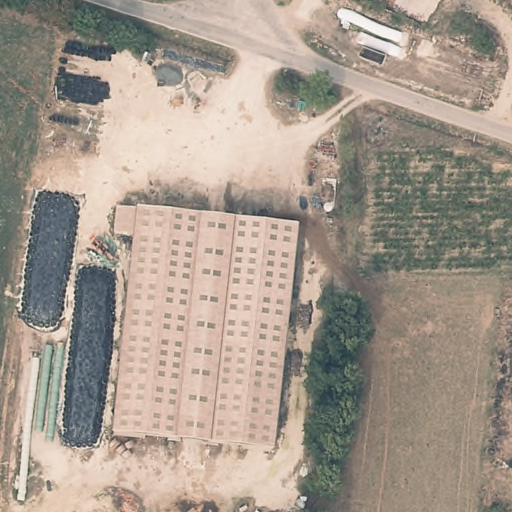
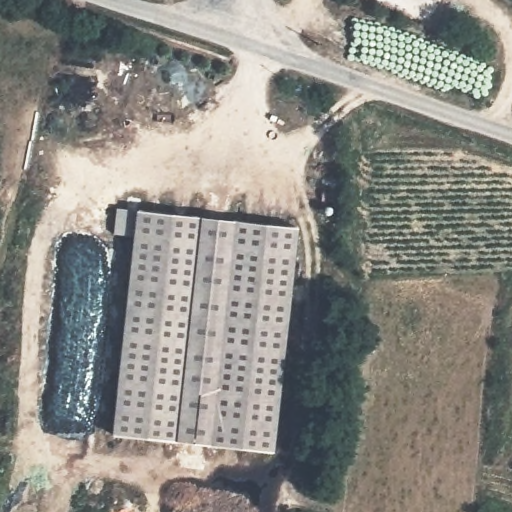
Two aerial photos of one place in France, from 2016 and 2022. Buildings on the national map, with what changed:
unchanged [(117,208),(136,211),(299,228),(274,452),(112,435),(134,237),(113,235),(117,208)]

